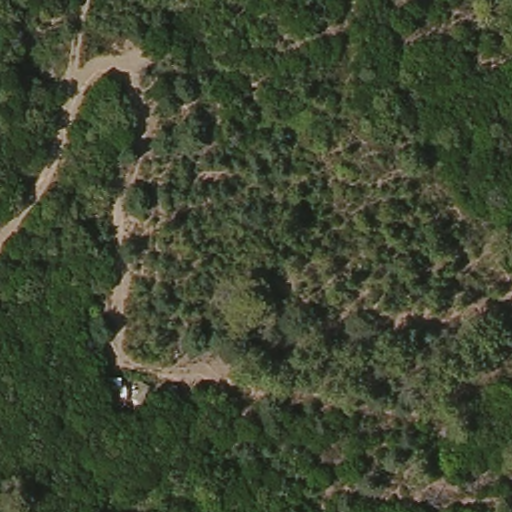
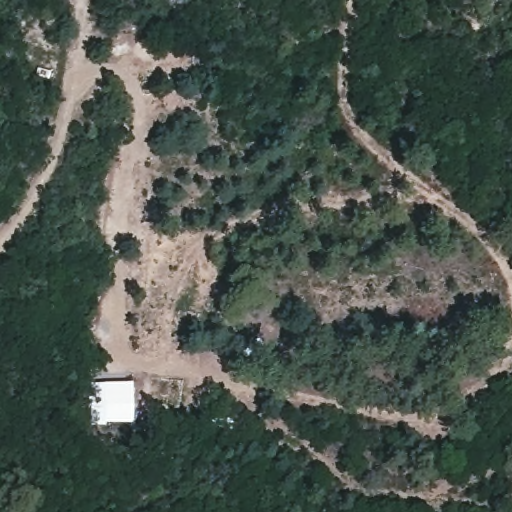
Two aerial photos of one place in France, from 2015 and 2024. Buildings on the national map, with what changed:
demolished [(142,380),(142,412),(102,412),(104,380),(142,380)]
new [(131,382),(133,424),(93,425),(91,383),(131,382)]

